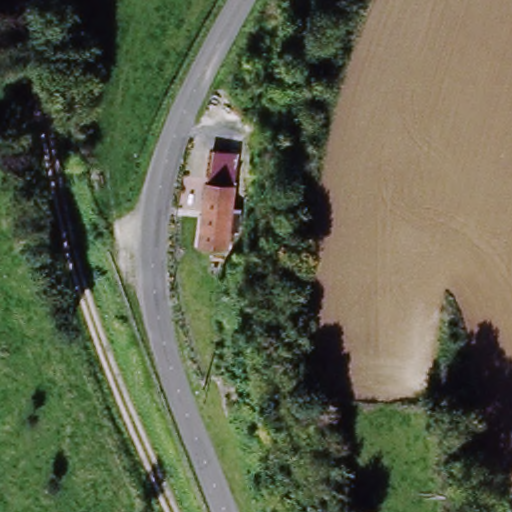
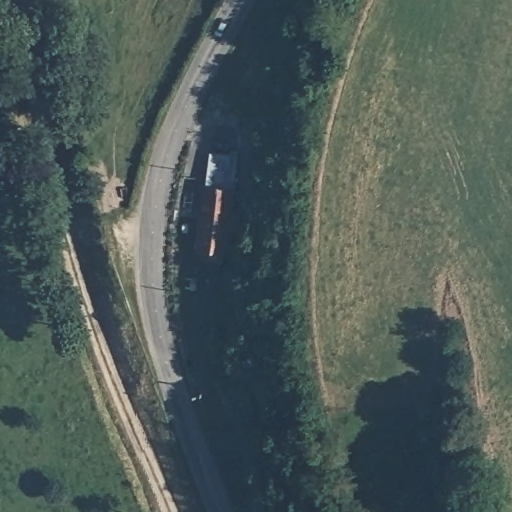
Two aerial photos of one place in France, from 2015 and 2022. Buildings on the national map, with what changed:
unchanged [(197,194),(197,160),(230,159),(230,194),(200,194),(197,194)]
unchanged [(230,194),(228,272),(199,272),(200,194),(230,194)]

